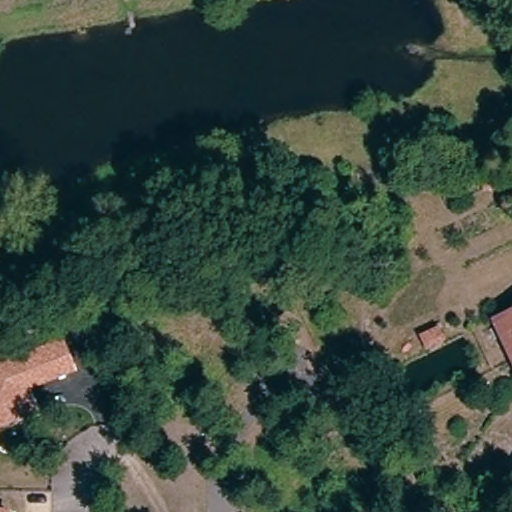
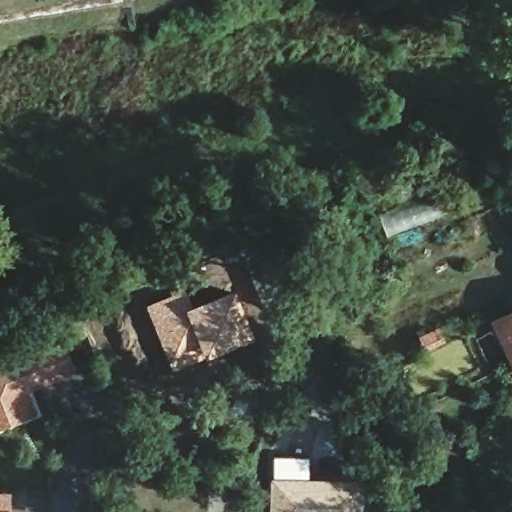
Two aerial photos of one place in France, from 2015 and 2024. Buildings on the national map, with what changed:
new [(173,369),(145,306),(183,289),(189,305),(235,288),(254,339),(205,357),(173,369)]
unchanged [(494,325),(512,316),(512,363),(494,325)]
unchanged [(437,326),(444,340),(426,348),(419,334),(437,326)]
unchanged [(29,390),(38,412),(0,427),(0,363),(61,339),(76,371),(29,390)]
new [(340,512),(271,512),(273,465),(283,465),(283,455),(304,456),(304,478),(354,479),(354,494),(338,506),(340,512)]
unchanged [(11,512),(0,512),(0,510),(11,510),(11,512)]

